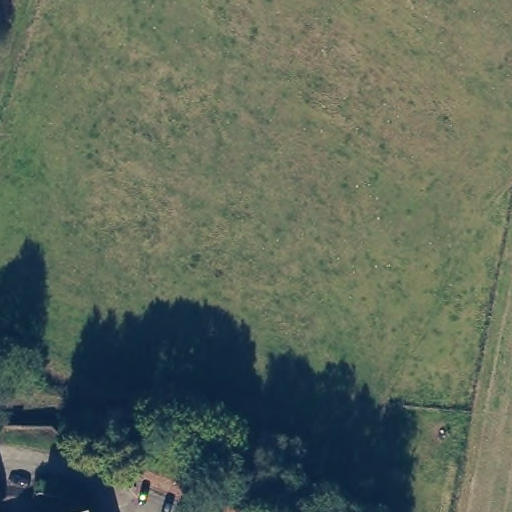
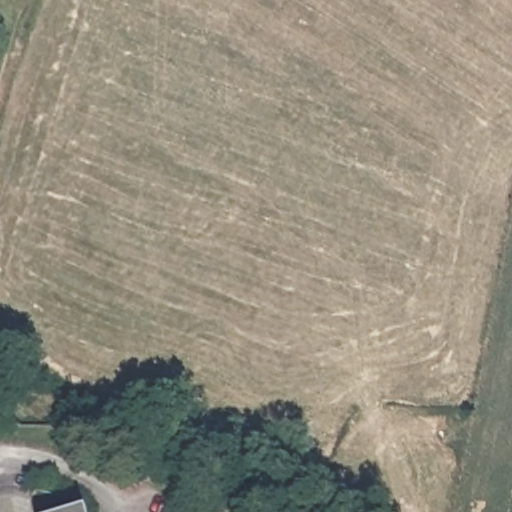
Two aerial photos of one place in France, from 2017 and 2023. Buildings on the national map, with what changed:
unchanged [(171,507),(173,508),(181,512),(168,512),(171,507)]

